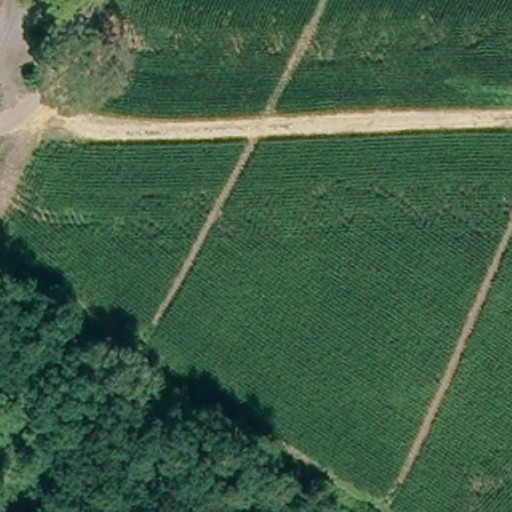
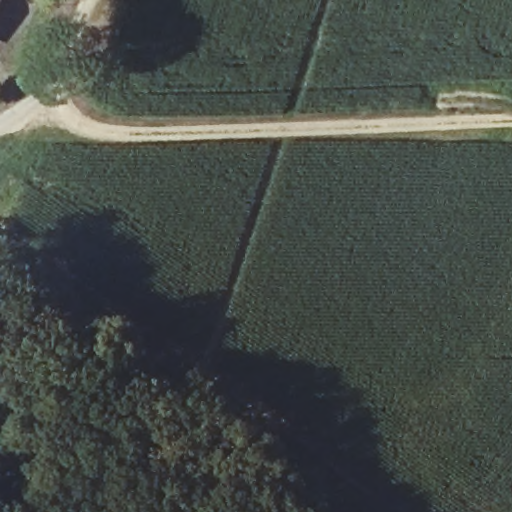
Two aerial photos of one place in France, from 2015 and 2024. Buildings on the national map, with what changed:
unchanged [(0,16),(0,0),(6,0),(3,9),(0,16)]

